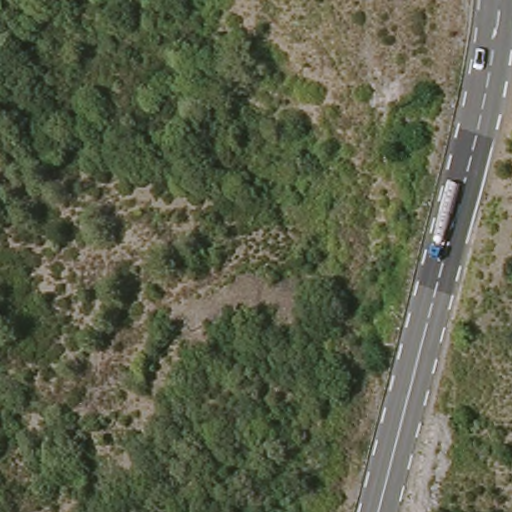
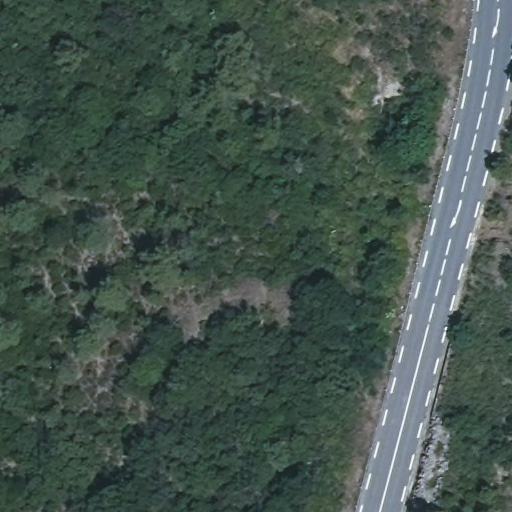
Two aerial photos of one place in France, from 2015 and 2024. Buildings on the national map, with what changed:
[]

